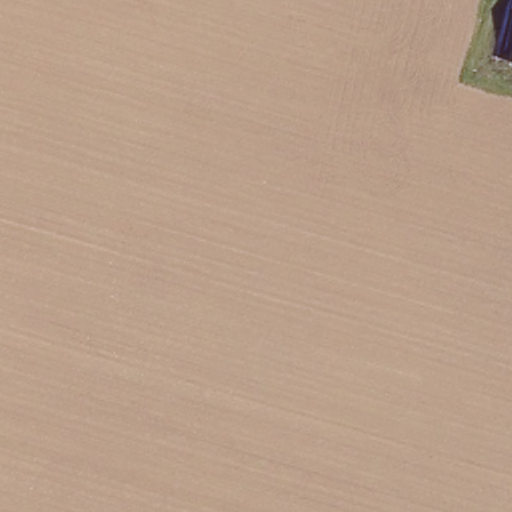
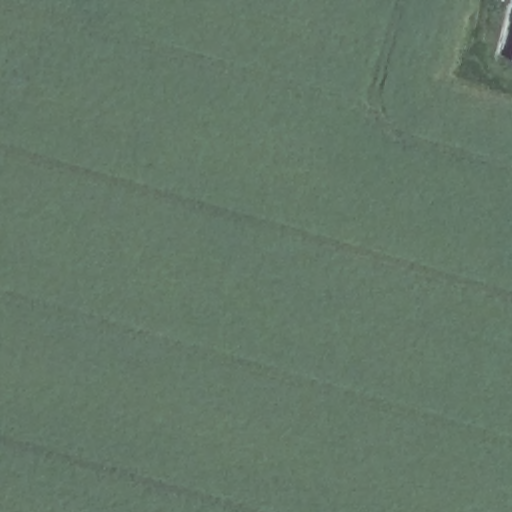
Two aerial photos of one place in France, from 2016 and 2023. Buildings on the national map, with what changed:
unchanged [(510,64),(512,52),(512,64),(510,64)]

